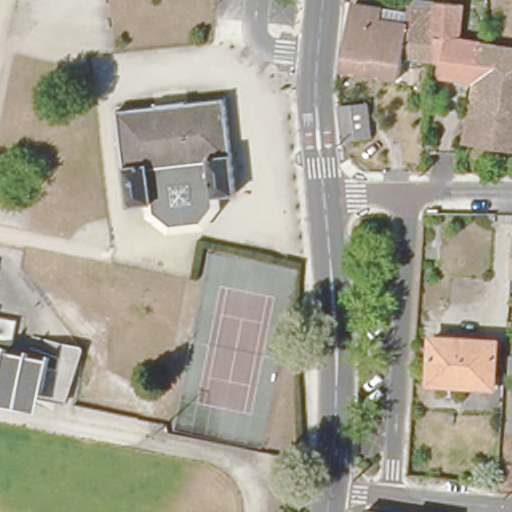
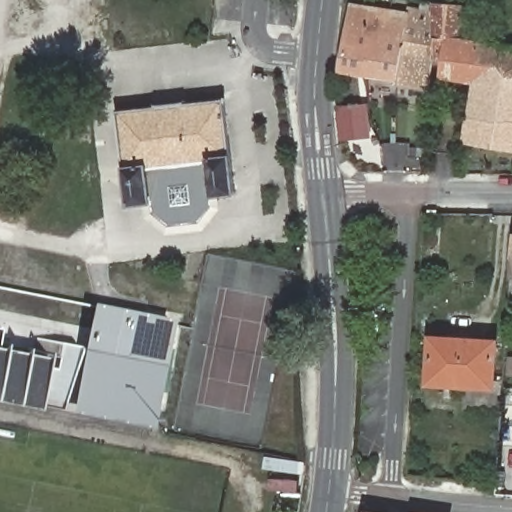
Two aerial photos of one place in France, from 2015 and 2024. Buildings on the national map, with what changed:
unchanged [(410,59),(405,58),(402,81),(345,71),(356,5),(381,9),(385,9),(410,13),(411,0),(420,0),(437,3),(435,63),(410,59)]
unchanged [(435,63),(437,3),(465,4),(461,42),(482,45),(477,75),(476,87),(441,82),(441,76),(435,76),(435,63)]
unchanged [(512,79),(506,78),(477,75),(482,45),(512,48),(512,79)]
unchanged [(477,75),(506,78),(512,79),(512,126),(471,121),(476,87),(477,75)]
unchanged [(116,106),(155,105),(155,102),(186,100),(186,103),(226,101),(231,198),(207,199),(207,209),(194,225),(164,227),(143,213),(143,202),(120,204),(116,106)]
unchanged [(373,110),(372,140),(368,140),(350,139),(345,139),(348,108),(373,110)]
unchanged [(471,121),(512,126),(512,149),(468,143),(471,121)]
unchanged [(512,268),(512,278),(511,278),(512,268)]
new [(95,303),(176,319),(155,429),(75,413),(95,303)]
unchanged [(495,384),(433,380),(436,337),(498,341),(495,384)]
unchanged [(37,338),(72,345),(66,379),(45,374),(46,366),(32,364),(37,338)]
unchanged [(32,364),(46,366),(45,374),(66,379),(61,408),(0,396),(0,357),(32,364)]
unchanged [(511,358),(512,358),(512,378),(510,378),(511,358)]
unchanged [(368,510),(378,512),(368,512),(368,510)]

